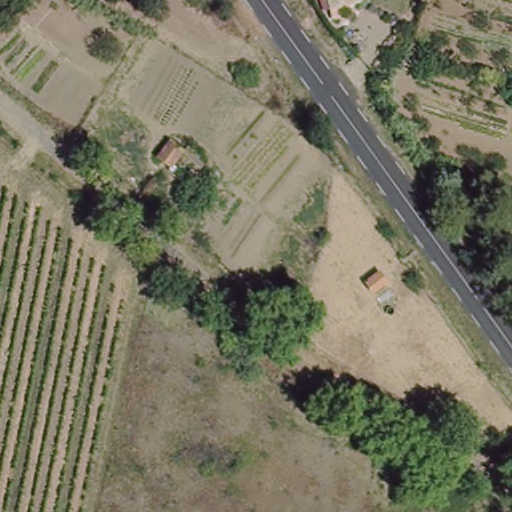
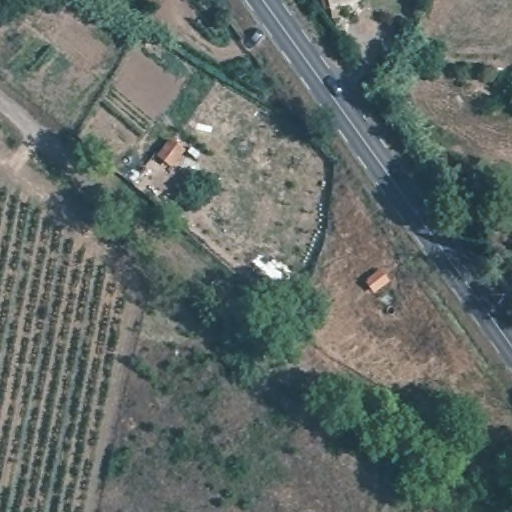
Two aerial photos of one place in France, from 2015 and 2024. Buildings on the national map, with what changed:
unchanged [(169,166),(161,159),(171,146),(180,154),(169,166)]
unchanged [(386,269),(394,282),(373,296),(369,285),(386,269)]

